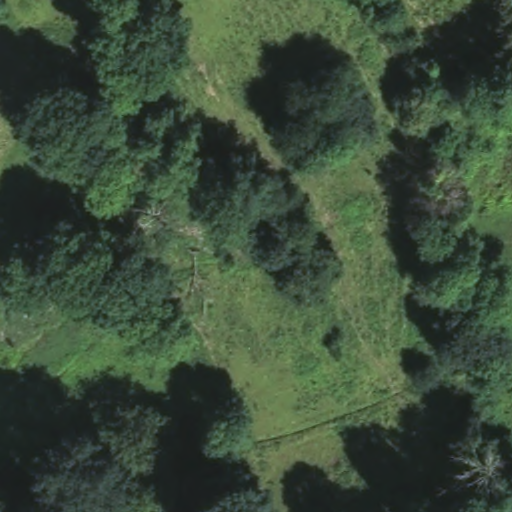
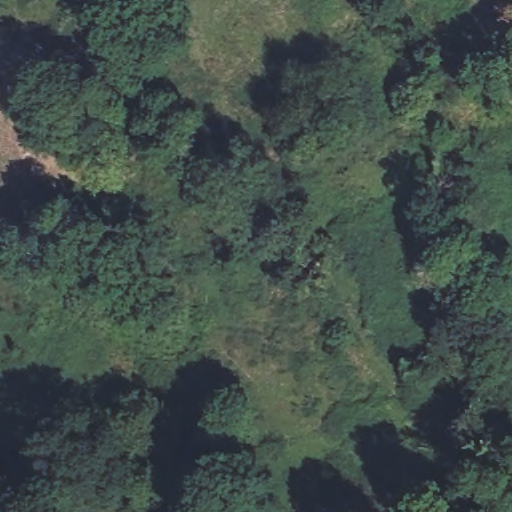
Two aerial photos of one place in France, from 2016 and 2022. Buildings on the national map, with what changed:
[]

